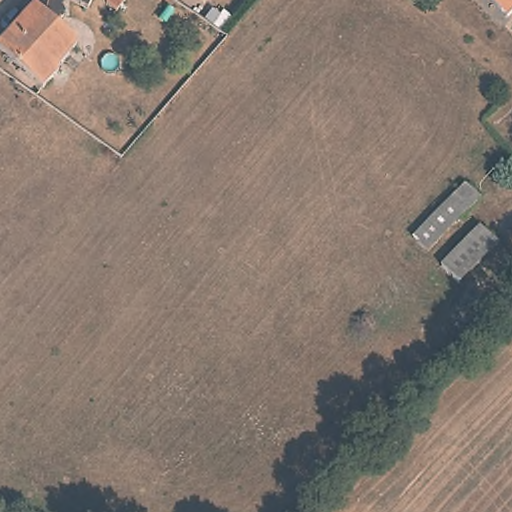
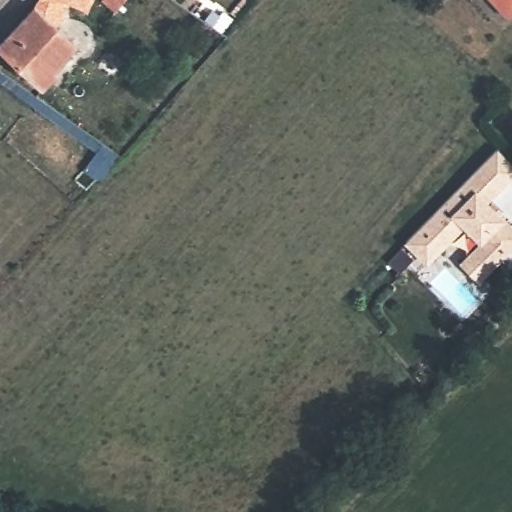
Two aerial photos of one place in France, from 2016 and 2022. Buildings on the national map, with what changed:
unchanged [(56,74),(44,88),(15,66),(8,72),(0,65),(0,55),(1,53),(0,52),(0,43),(35,7),(39,0),(90,0),(84,11),(60,0),(65,19),(75,27),(68,36),(80,47),(77,50),(84,56),(64,81),(56,74)]
unchanged [(124,2),(122,0),(126,0),(124,2)]
unchanged [(512,10),(505,16),(492,0),(512,0),(512,10)]
new [(512,165),(512,175),(487,200),(506,217),(512,223),(512,250),(481,283),(460,262),(480,242),(464,227),(427,265),(403,242),(495,148),(512,165)]

